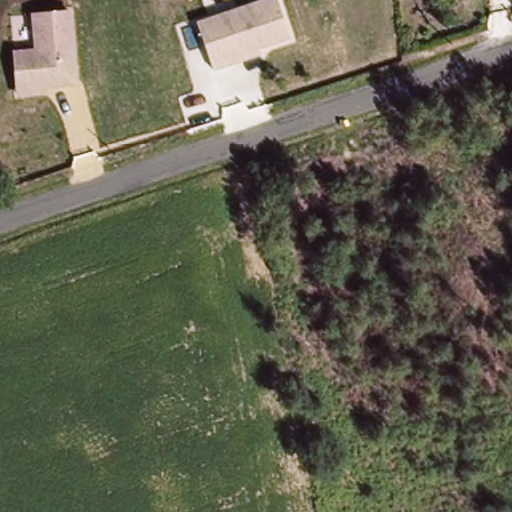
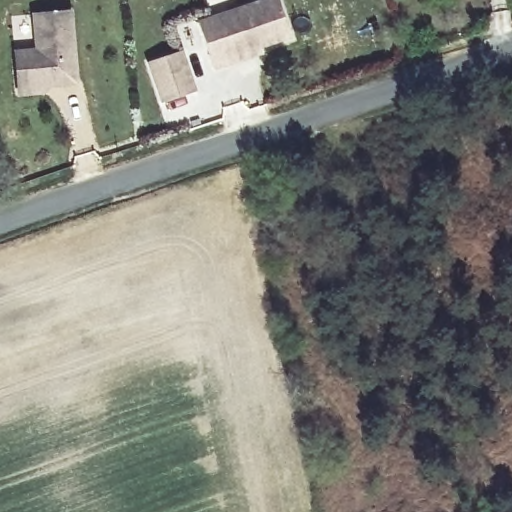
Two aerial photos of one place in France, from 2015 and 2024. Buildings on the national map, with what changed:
unchanged [(216,66),(199,20),(255,0),(281,0),(293,34),(262,44),(263,50),(232,60),(216,66)]
unchanged [(44,90),(18,93),(18,87),(15,50),(37,48),(33,13),(70,9),(78,81),(61,83),(48,84),(44,90)]
new [(184,48),(196,90),(159,102),(145,60),(184,48)]

